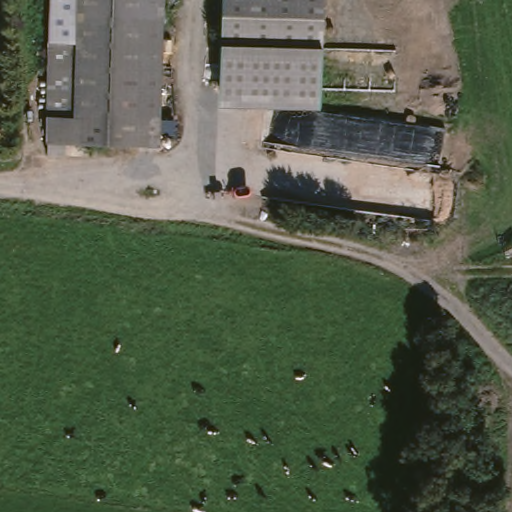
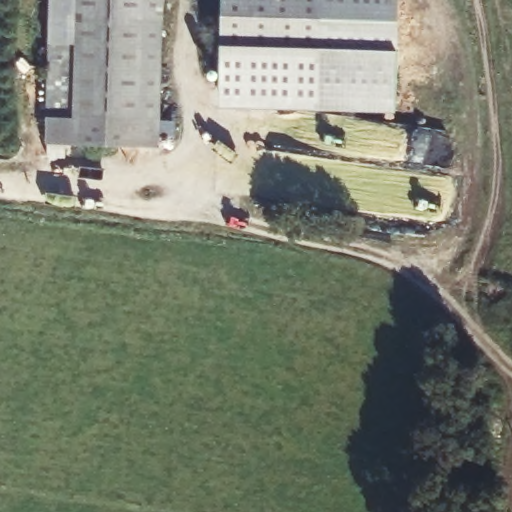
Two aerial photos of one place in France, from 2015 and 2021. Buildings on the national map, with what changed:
unchanged [(51,0),(161,0),(155,150),(44,145),(46,45),(51,0)]
unchanged [(318,112),(217,109),(221,0),(319,0),(318,112)]
new [(319,0),(399,0),(394,115),(318,112),(319,0)]

